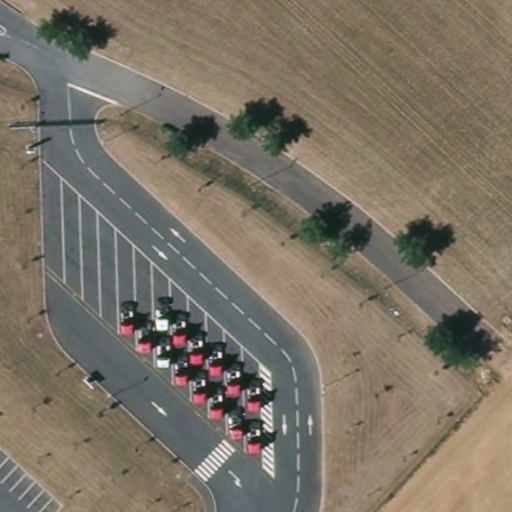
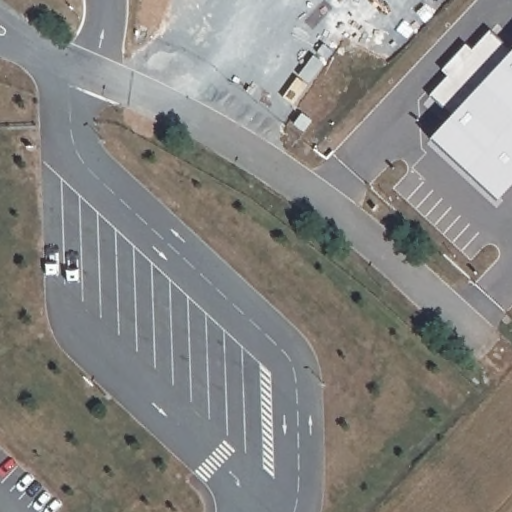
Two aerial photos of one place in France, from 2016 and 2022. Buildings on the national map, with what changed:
new [(452,75),(446,69),(468,46),(473,51),(492,31),(512,50),(512,188),(499,201),(432,139),(454,114),(433,95),(452,75)]

